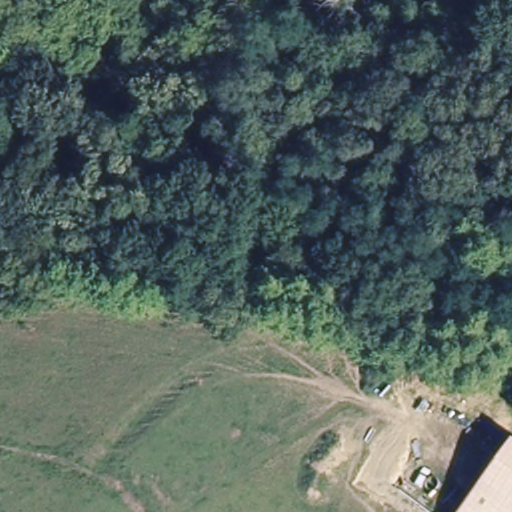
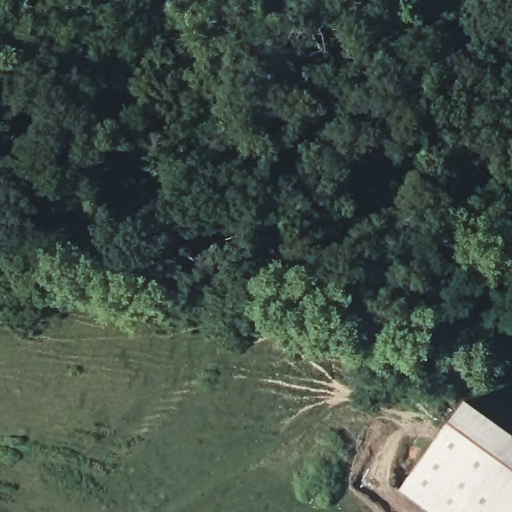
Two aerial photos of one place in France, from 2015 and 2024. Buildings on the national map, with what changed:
new [(464,401),(512,435),(456,512),(428,512),(398,491),(464,401)]
unchanged [(512,512),(456,512),(512,435),(512,512)]

